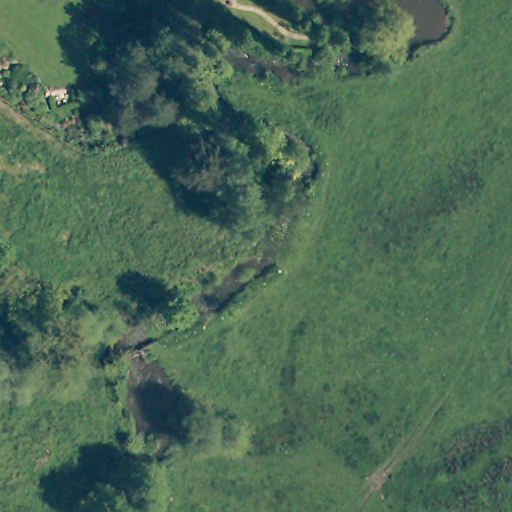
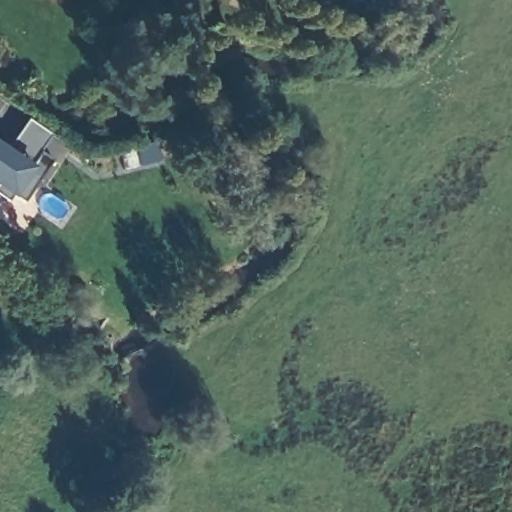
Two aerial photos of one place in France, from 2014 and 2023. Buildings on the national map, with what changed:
new [(7,147),(28,118),(52,133),(40,150),(54,160),(25,202),(14,195),(11,193),(7,199),(0,194),(0,142),(7,147)]

